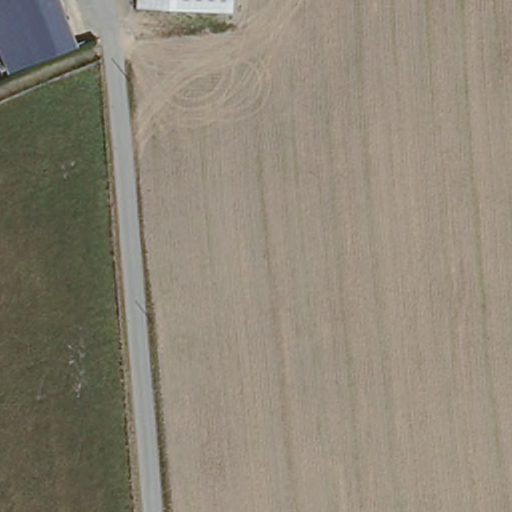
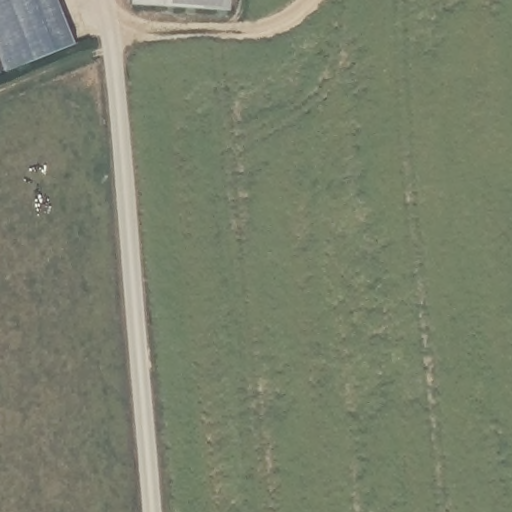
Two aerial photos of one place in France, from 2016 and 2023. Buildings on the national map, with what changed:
unchanged [(0,0),(62,0),(80,47),(11,74),(0,46),(0,0)]
unchanged [(234,11),(136,4),(136,0),(234,0),(234,11)]

